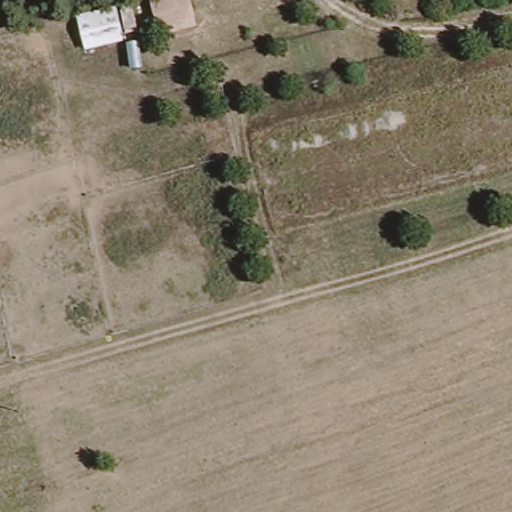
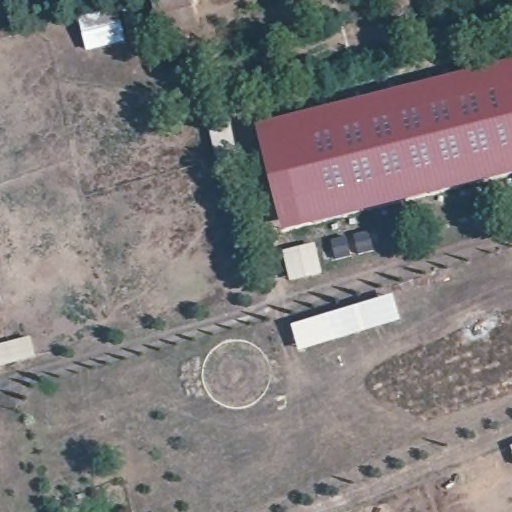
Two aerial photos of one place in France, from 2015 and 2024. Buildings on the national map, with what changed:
unchanged [(160,35),(145,0),(187,0),(195,24),(160,35)]
new [(120,8),(128,40),(88,51),(80,20),(120,8)]
new [(512,60),(512,175),(507,176),(282,230),(256,125),(512,60)]
new [(210,126),(232,122),(239,164),(218,167),(210,126)]
new [(283,252),(316,244),(323,275),(291,282),(283,252)]
new [(393,294),(401,321),(298,351),(291,325),(393,294)]

